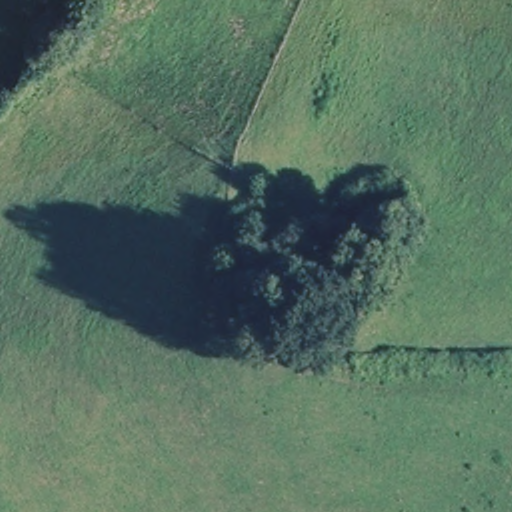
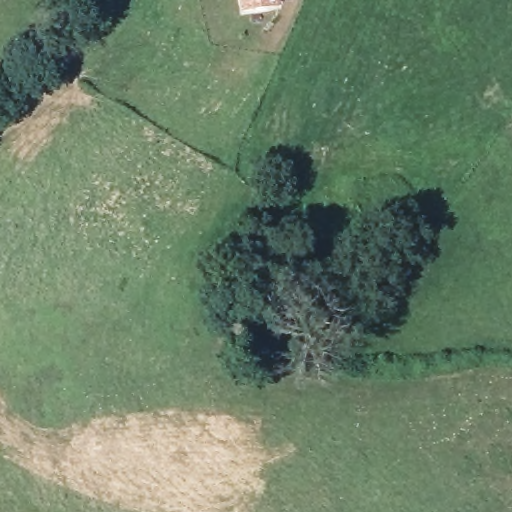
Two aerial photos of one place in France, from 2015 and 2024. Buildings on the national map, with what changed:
new [(279,0),(280,6),(240,11),(238,0),(279,0)]

